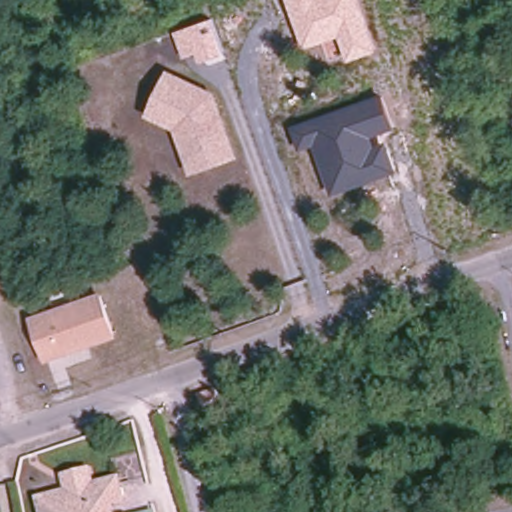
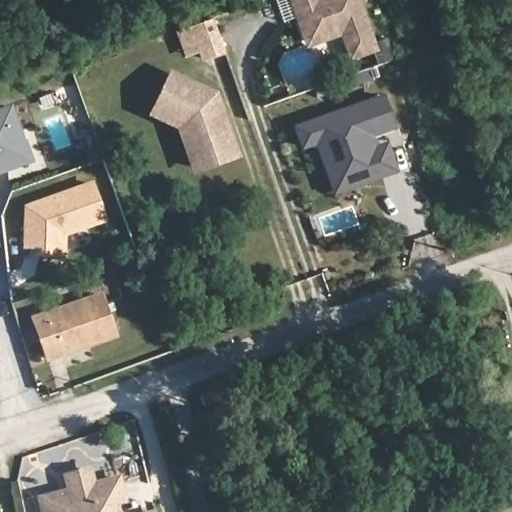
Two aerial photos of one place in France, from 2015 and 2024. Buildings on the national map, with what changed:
unchanged [(342,36),(307,48),(291,0),(361,0),(380,50),(350,61),(342,36)]
unchanged [(227,55),(202,62),(198,54),(186,58),(176,30),(216,16),(227,55)]
unchanged [(241,155),(190,173),(176,127),(146,115),(167,67),(217,90),(241,155)]
unchanged [(397,129),(375,136),(379,146),(391,142),(401,175),(333,195),(316,145),(302,150),(294,125),(385,95),(397,129)]
new [(12,102),(32,160),(0,170),(0,107),(12,102)]
new [(110,215),(69,230),(70,251),(47,252),(47,245),(34,245),(32,202),(97,180),(110,215)]
unchanged [(46,361),(29,315),(102,291),(117,336),(46,361)]
unchanged [(112,508),(113,512),(43,512),(41,500),(60,496),(72,493),(69,480),(92,474),(94,481),(96,488),(101,511),(112,508)]
unchanged [(122,475),(127,500),(117,503),(120,512),(113,512),(112,508),(101,511),(96,488),(94,481),(122,475)]
unchanged [(153,508),(154,512),(133,512),(153,508)]

